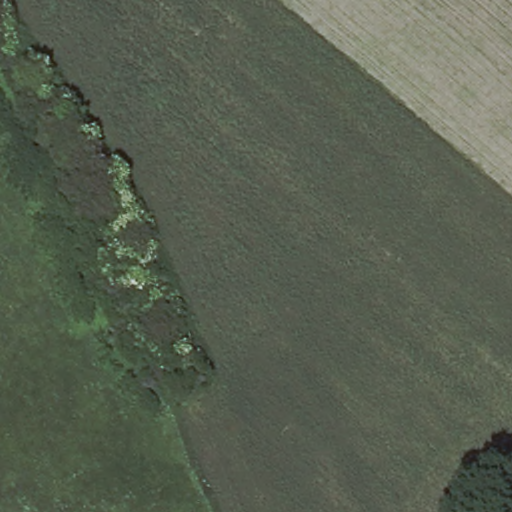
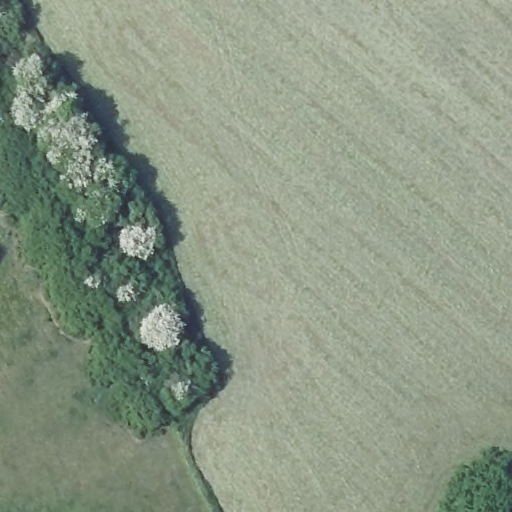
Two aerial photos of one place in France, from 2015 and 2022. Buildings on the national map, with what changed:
[]

